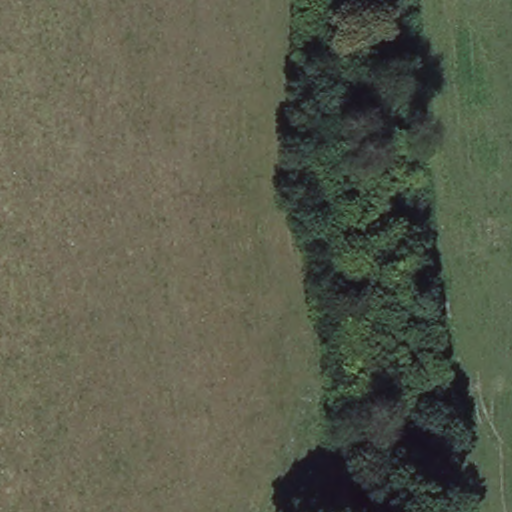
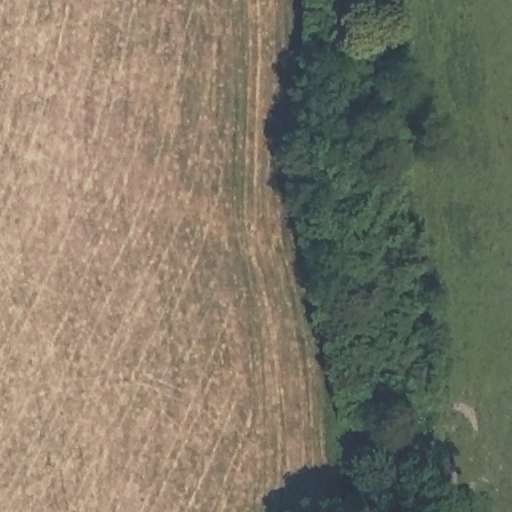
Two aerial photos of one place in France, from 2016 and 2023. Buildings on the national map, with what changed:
unchanged [(473,251),(454,253),(452,236),(470,235),(473,251)]

